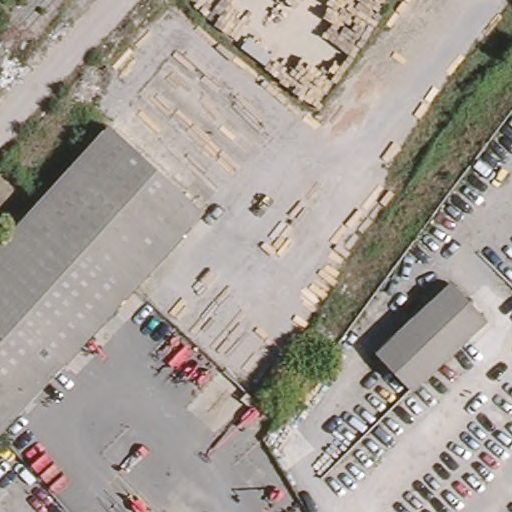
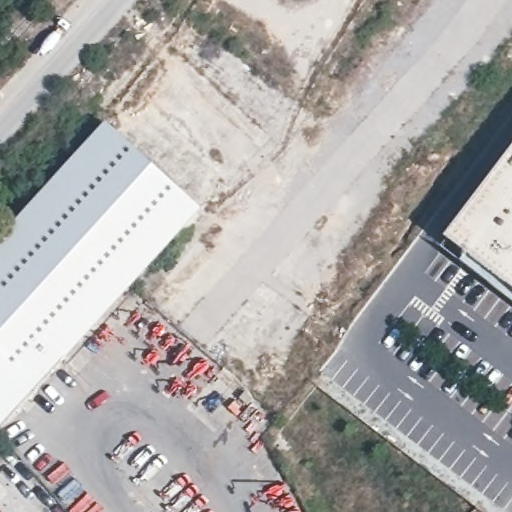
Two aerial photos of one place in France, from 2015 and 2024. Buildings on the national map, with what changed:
unchanged [(105,119),(201,209),(0,427),(0,235),(105,119)]
new [(512,156),(512,286),(449,239),(512,156)]
demolished [(459,293),(491,326),(410,397),(379,360),(459,293)]

